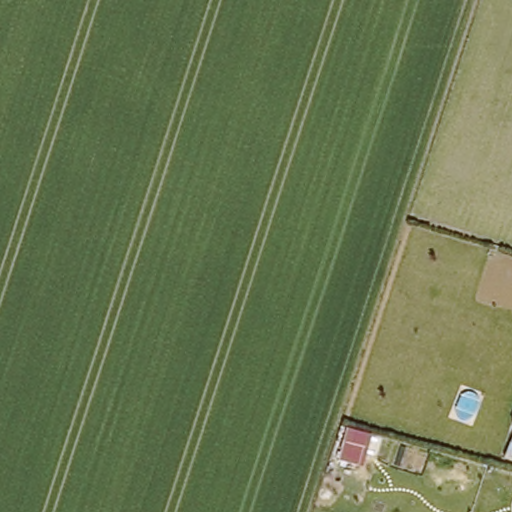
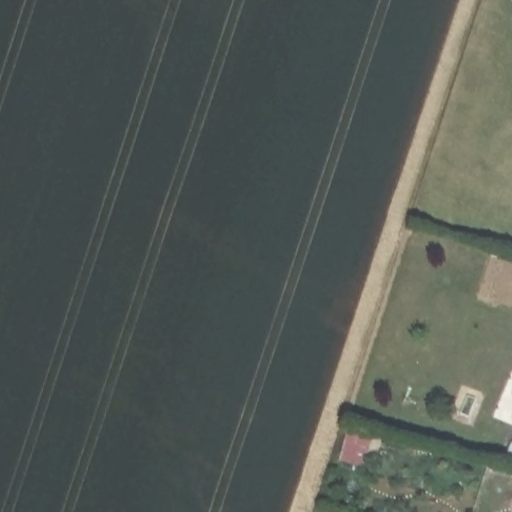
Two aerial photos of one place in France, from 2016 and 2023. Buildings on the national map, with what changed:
unchanged [(502,465),(512,441),(512,469),(502,465)]

